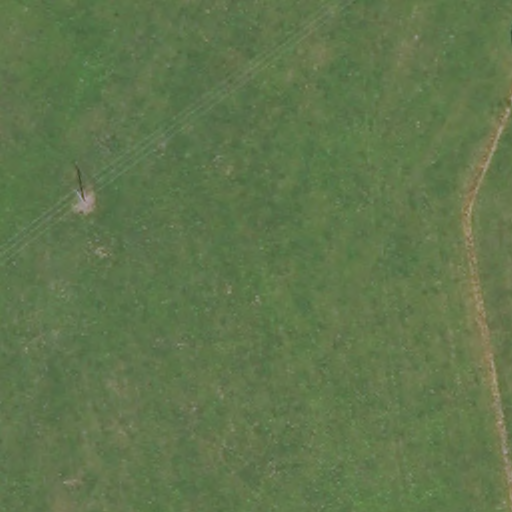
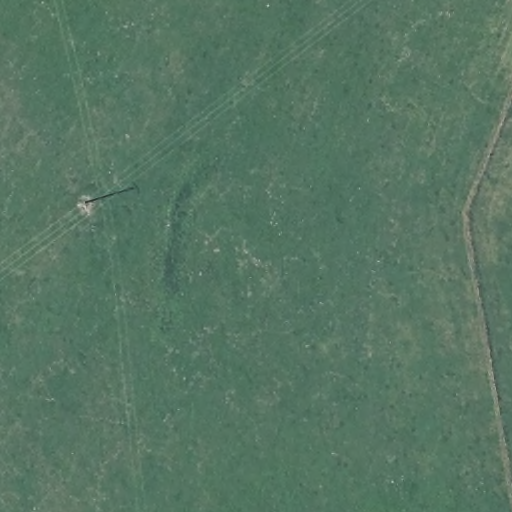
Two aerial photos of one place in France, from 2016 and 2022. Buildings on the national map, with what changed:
[]

